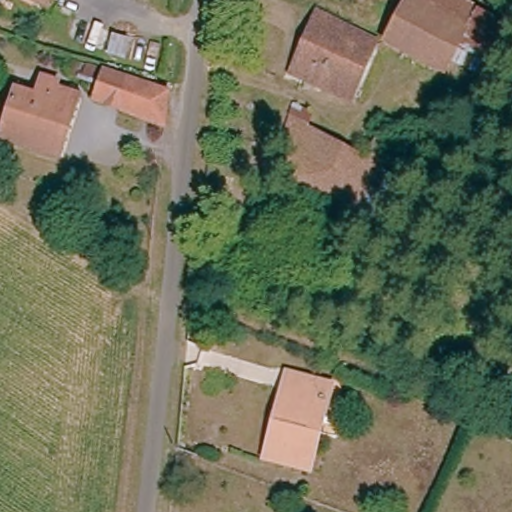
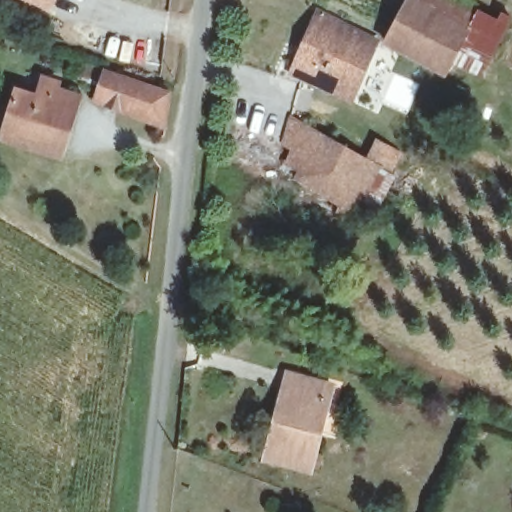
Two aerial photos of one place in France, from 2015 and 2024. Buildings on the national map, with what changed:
unchanged [(24,0),(54,0),(49,9),(35,2),(33,7),(23,2),(24,0)]
unchanged [(482,83),(453,67),(447,78),(383,46),(407,0),(459,0),(508,26),(482,83)]
unchanged [(349,97),(298,74),(290,71),(315,12),(376,39),(349,97)]
unchanged [(165,118),(96,93),(100,80),(93,78),(94,75),(90,72),(89,66),(89,61),(167,87),(165,118)]
unchanged [(0,144),(0,138),(12,90),(37,96),(46,73),(59,77),(55,93),(76,101),(60,161),(0,144)]
unchanged [(298,121),(375,168),(386,149),(406,161),(396,181),(385,175),(362,219),(295,180),(297,171),(285,166),(298,120),(298,121)]
unchanged [(308,467),(260,454),(270,413),(279,416),(291,370),(331,380),(308,467)]

